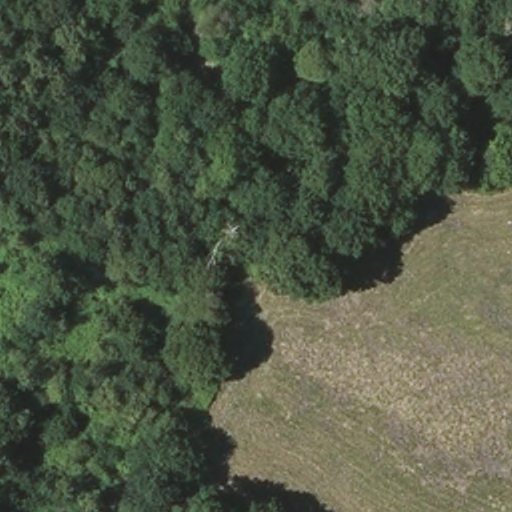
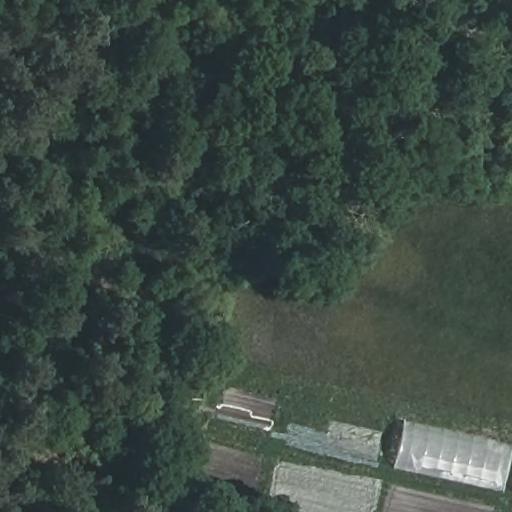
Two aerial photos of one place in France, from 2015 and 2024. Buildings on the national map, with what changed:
new [(512,495),(392,468),(403,420),(512,443),(512,495)]

